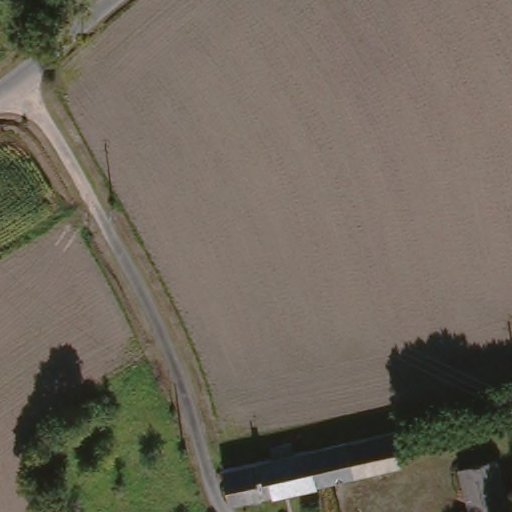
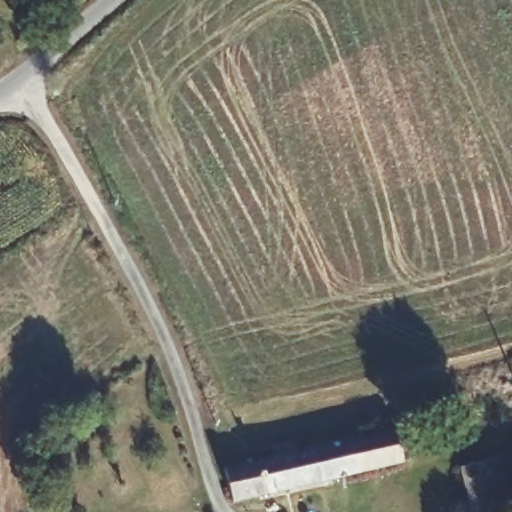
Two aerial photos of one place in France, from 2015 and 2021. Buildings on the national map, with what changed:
unchanged [(283,459),(281,449),(305,442),(308,452),(330,447),(323,422),(346,416),(353,441),(354,445),(405,432),(412,458),(383,467),(334,482),(241,507),(232,471),(283,459)]
unchanged [(507,512),(471,512),(462,471),(498,463),(509,511),(507,512)]

